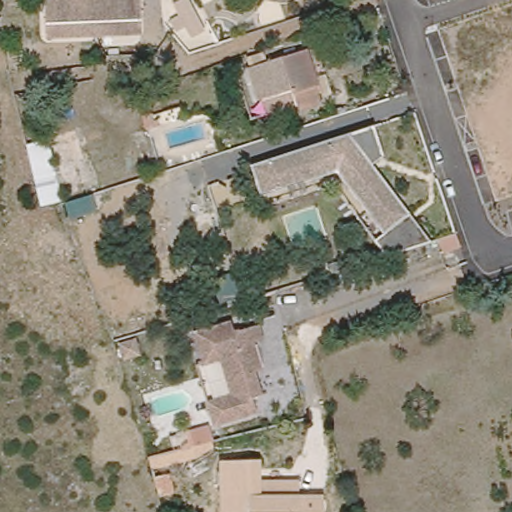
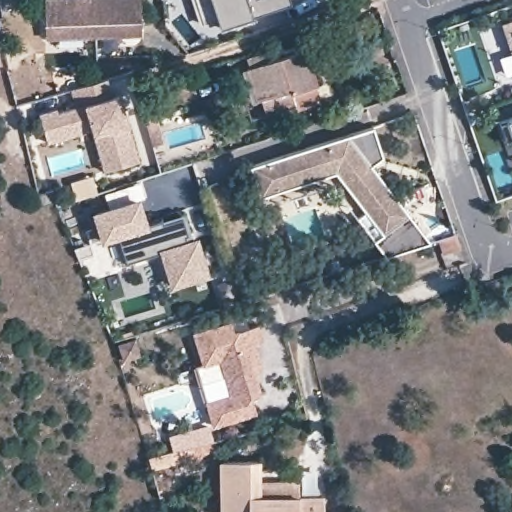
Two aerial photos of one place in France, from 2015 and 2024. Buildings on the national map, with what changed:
unchanged [(144,25),(54,27),(54,0),(143,0),(144,25)]
demolished [(192,36),(185,24),(178,28),(172,18),(178,12),(173,2),(177,0),(190,0),(205,28),(192,36)]
new [(291,3),(252,16),(220,27),(217,19),(202,24),(194,0),(290,0),(291,3)]
new [(507,49),(498,23),(512,18),(512,47),(507,49)]
unchanged [(289,108),(283,87),(252,97),(243,67),(300,49),(313,45),(327,97),(313,101),(289,108)]
new [(132,161),(100,169),(90,133),(47,145),(39,113),(75,104),(72,90),(100,81),(104,99),(117,95),(132,161)]
new [(512,119),(512,140),(505,142),(499,123),(512,119)]
unchanged [(376,123),(388,158),(373,163),(408,209),(388,226),(342,169),(263,196),(250,163),(376,123)]
new [(145,227),(182,219),(187,240),(195,238),(204,279),(166,290),(158,254),(125,262),(117,238),(100,244),(90,216),(137,200),(145,227)]
unchanged [(252,368),(260,397),(252,400),(255,414),(213,426),(206,403),(230,396),(220,360),(203,365),(193,334),(230,323),(233,333),(257,325),(262,341),(252,344),(258,365),(252,368)]
new [(210,426),(213,441),(173,451),(170,437),(210,426)]
unchanged [(264,457),(263,493),(327,491),(327,512),(222,512),(220,457),(264,457)]

